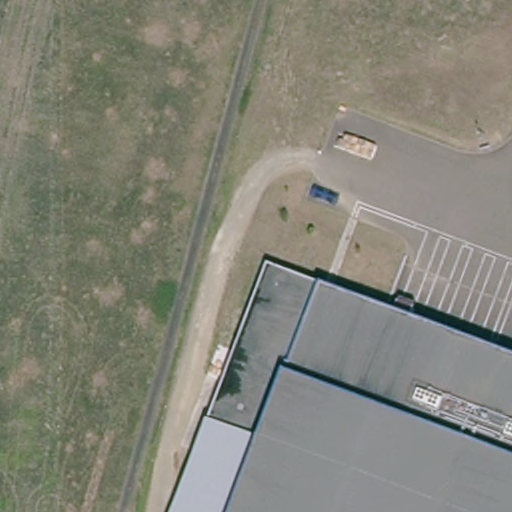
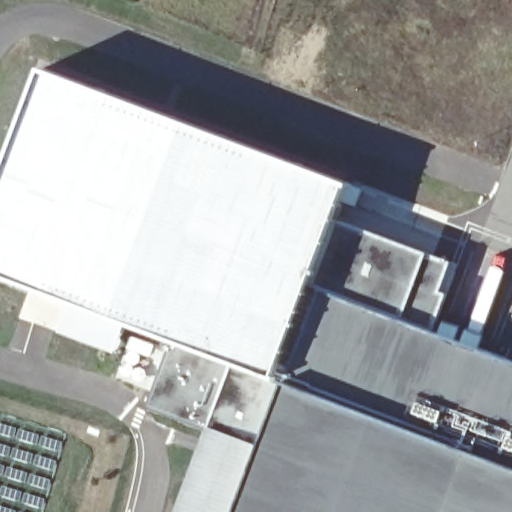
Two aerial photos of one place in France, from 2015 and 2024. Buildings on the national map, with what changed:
new [(0,275),(0,183),(45,66),(353,183),(339,220),(430,254),(454,262),(443,292),(452,295),(439,331),(322,289),(268,270),(235,360),(210,425),(208,430),(150,407),(180,342),(134,325),(118,353),(60,330),(75,302),(0,275)]
unchanged [(177,512),(210,425),(268,270),(322,289),(512,357),(512,512),(177,512)]

